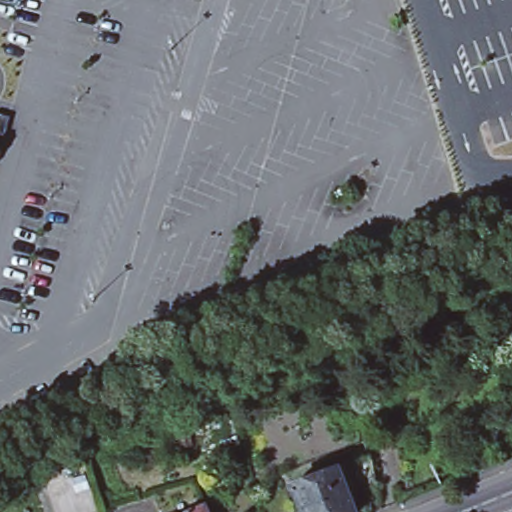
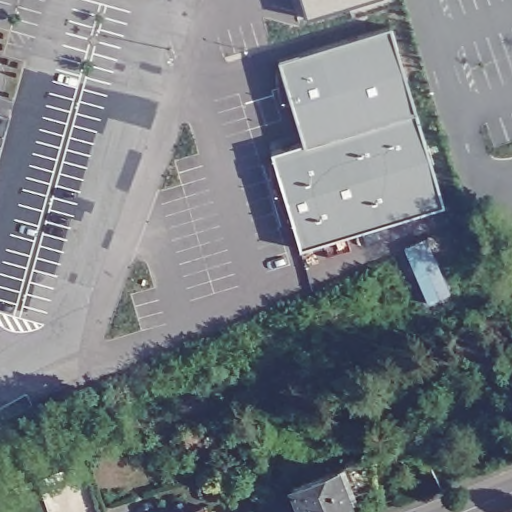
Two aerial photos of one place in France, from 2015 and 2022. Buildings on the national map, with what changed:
new [(272,153),(304,143),(280,61),(390,28),(443,204),(299,246),(272,153)]
unchanged [(0,145),(0,114),(9,116),(0,145)]
unchanged [(365,461),(372,490),(343,501),(347,512),(293,512),(285,492),(332,474),(365,461)]
unchanged [(205,506),(207,512),(190,512),(205,506)]

